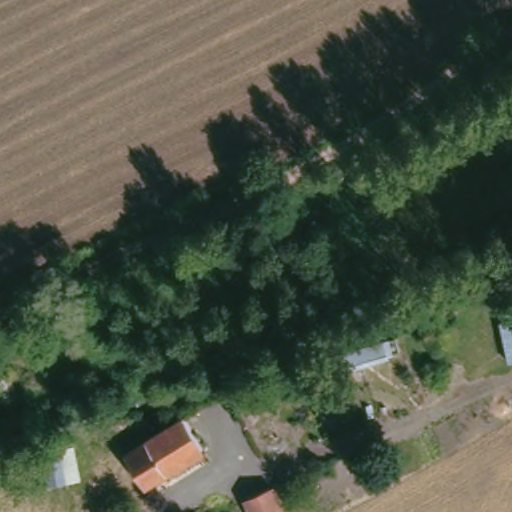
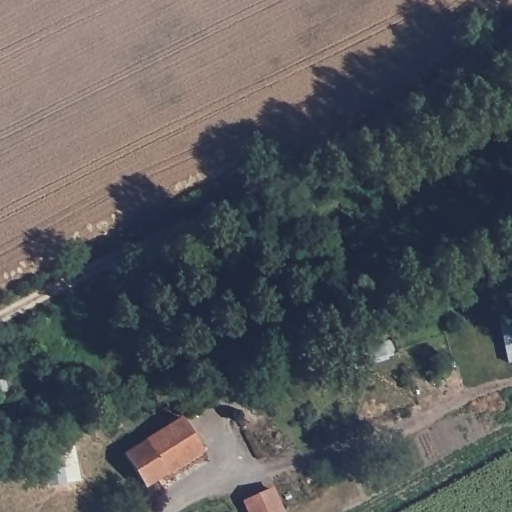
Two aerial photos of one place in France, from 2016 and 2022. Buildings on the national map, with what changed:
unchanged [(512,340),(507,316),(512,315),(512,340)]
unchanged [(383,343),(387,357),(347,369),(342,355),(383,343)]
unchanged [(247,381),(254,395),(247,397),(242,384),(247,381)]
unchanged [(178,413),(199,447),(140,483),(120,449),(178,413)]
unchanged [(67,481),(47,485),(39,445),(59,441),(67,481)]
unchanged [(283,509),(277,512),(249,512),(242,496),(272,482),(283,509)]

